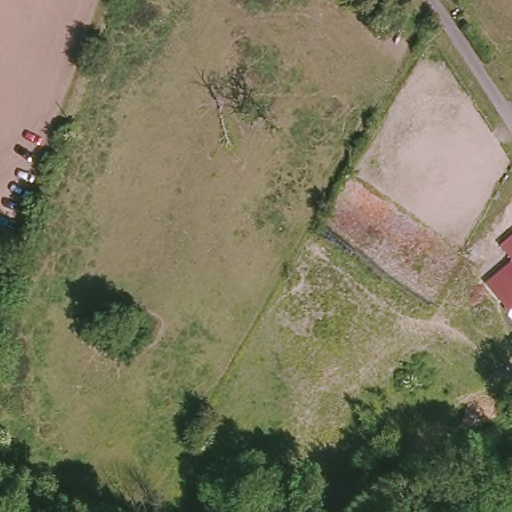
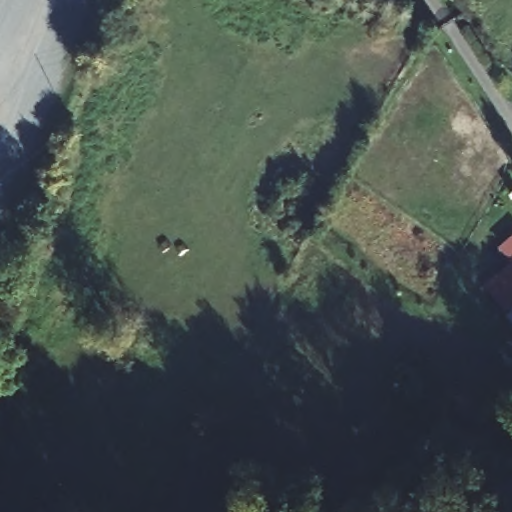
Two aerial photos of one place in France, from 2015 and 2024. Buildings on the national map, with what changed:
unchanged [(512,250),(512,275),(500,260),(512,250)]
unchanged [(512,294),(512,301),(508,297),(512,294)]

